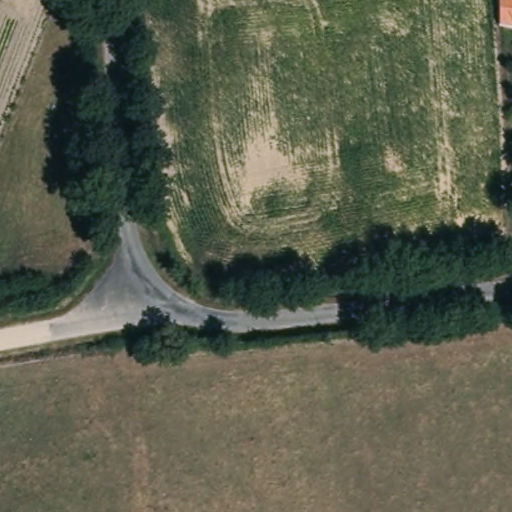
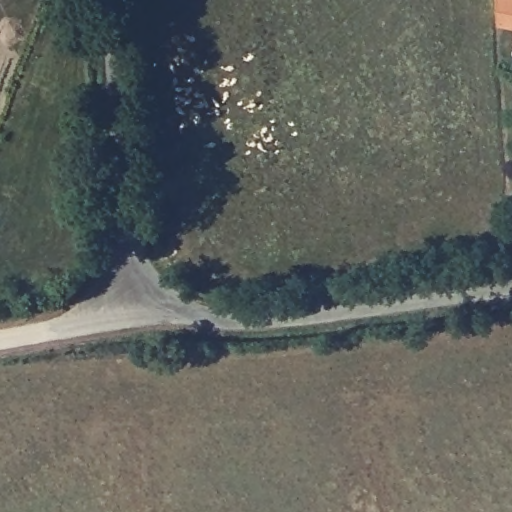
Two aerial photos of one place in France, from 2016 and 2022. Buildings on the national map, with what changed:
unchanged [(504,26),(504,0),(512,0),(512,27),(504,26)]

